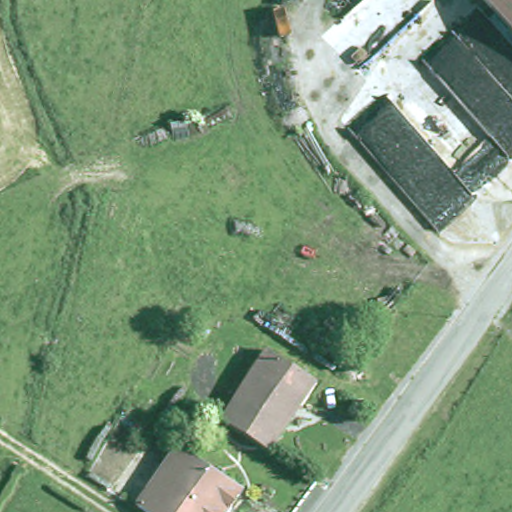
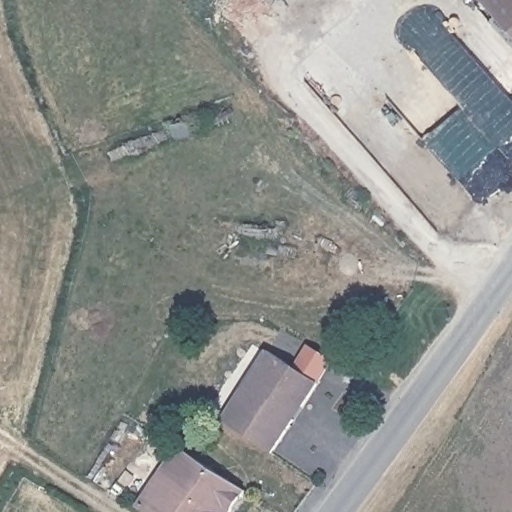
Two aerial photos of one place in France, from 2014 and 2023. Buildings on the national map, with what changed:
unchanged [(512,0),(512,29),(486,0),(512,0)]
unchanged [(256,370),(239,358),(244,347),(257,327),(276,340),(323,372),(276,442),(229,410),(256,370)]
unchanged [(245,478),(222,512),(161,512),(139,497),(181,437),(186,440),(245,478)]

